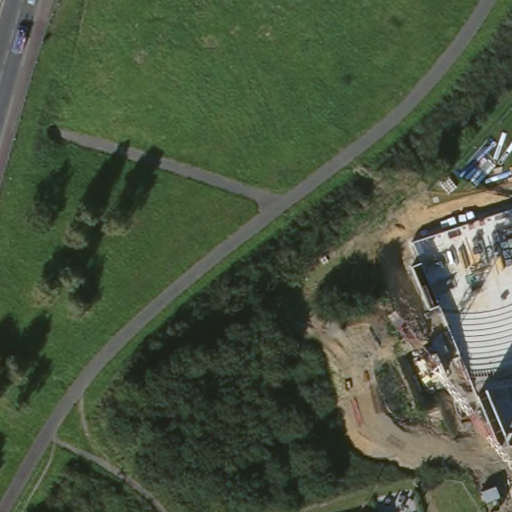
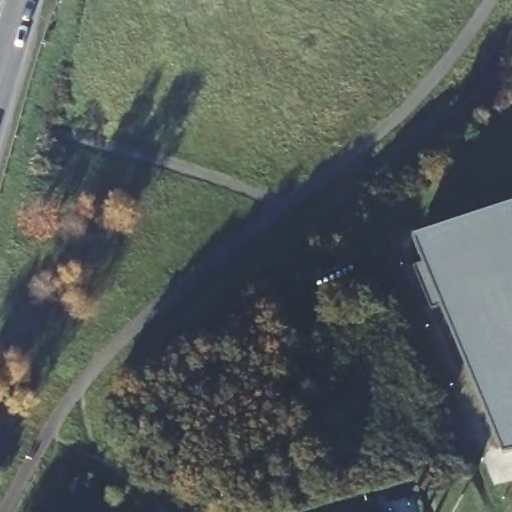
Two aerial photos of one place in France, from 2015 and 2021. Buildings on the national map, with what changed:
new [(438,303),(429,309),(412,267),(421,261),(414,241),(512,209),(512,453),(503,455),(438,303)]

